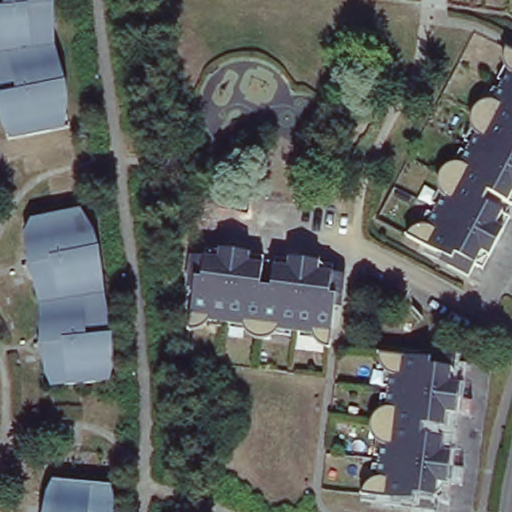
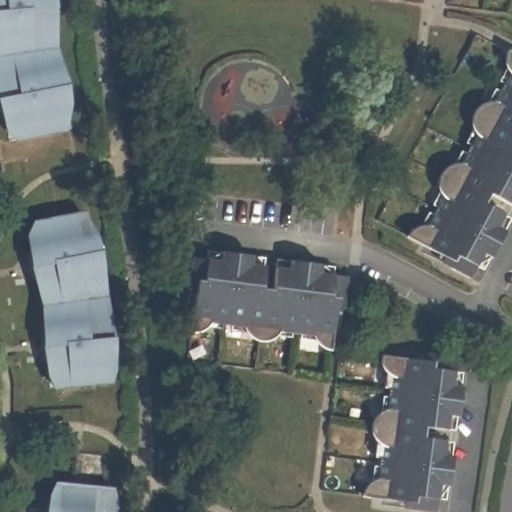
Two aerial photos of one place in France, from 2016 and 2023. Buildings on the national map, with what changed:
unchanged [(1,124),(0,119),(0,0),(45,0),(47,29),(49,43),(51,56),(61,98),(54,99),(59,125),(47,127),(22,132),(10,134),(8,122),(1,124)]
unchanged [(507,128),(505,133),(512,137),(512,191),(507,199),(477,183),(475,188),(473,192),(502,209),(498,218),(496,221),(504,225),(496,240),(490,253),(481,249),(479,253),(474,261),(468,273),(447,262),(451,256),(405,231),(408,227),(413,223),(416,222),(421,221),(425,221),(442,191),(439,187),(437,183),(436,178),(437,173),(439,168),(442,165),(445,162),(450,160),(455,159),(459,159),(475,130),(471,126),(470,122),(468,117),(469,112),(471,106),(473,104),(477,100),(481,98),(486,97),(490,97),(492,98),(508,68),(505,64),(503,59),(502,55),(503,50),(504,45),(505,45),(512,49),(512,124),(510,123),(507,128)]
unchanged [(52,369),(49,370),(42,311),(41,300),(40,289),(27,231),(35,230),(32,218),(45,215),(69,210),(80,208),(85,234),(92,233),(100,278),(103,292),(105,306),(112,364),(108,364),(109,377),(96,378),(65,381),(54,382),(52,369)]
unchanged [(203,318),(200,322),(197,325),(192,327),(187,328),(185,327),(186,319),(191,277),(185,276),(187,252),(214,255),(215,246),(230,248),(246,250),(245,259),(259,261),(254,295),(259,296),(265,297),(270,262),(283,264),(285,255),(300,257),(315,259),(314,268),(340,272),(337,295),(330,294),(325,337),(324,346),(319,344),(315,341),(312,339),(309,334),(308,331),(272,327),(269,331),(265,334),(261,336),(255,336),(251,335),(246,333),(244,330),(240,326),(239,323),(220,320),(203,318)]
unchanged [(362,491),(363,486),(367,480),(369,478),(373,475),(377,474),(379,457),(381,440),(377,437),(374,434),(371,429),(370,425),(370,421),(372,415),(375,411),(378,407),(382,405),(386,404),(388,388),(390,372),(386,370),(381,364),(380,362),(378,357),(377,352),(378,350),(420,356),(421,349),(445,352),(443,364),(447,365),(452,366),(451,380),(460,381),(458,397),(456,412),(447,410),(445,424),(411,421),(411,426),(410,432),(444,435),(442,449),(451,451),(447,481),(438,480),(435,507),(428,506),(411,505),(412,498),(362,491)]
unchanged [(54,496),(55,483),(66,484),(98,488),(110,489),(109,501),(112,501),(111,512),(48,512),(50,496),(54,496)]

